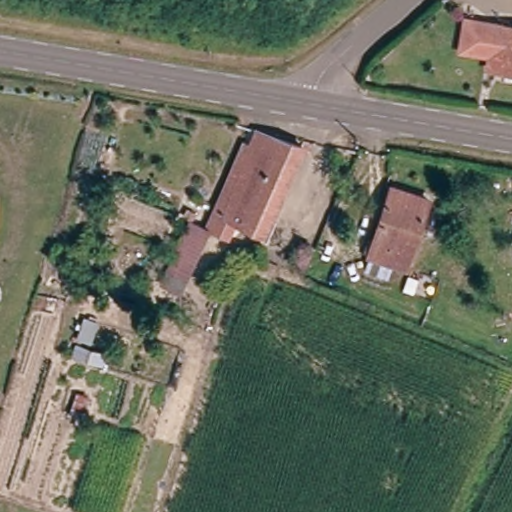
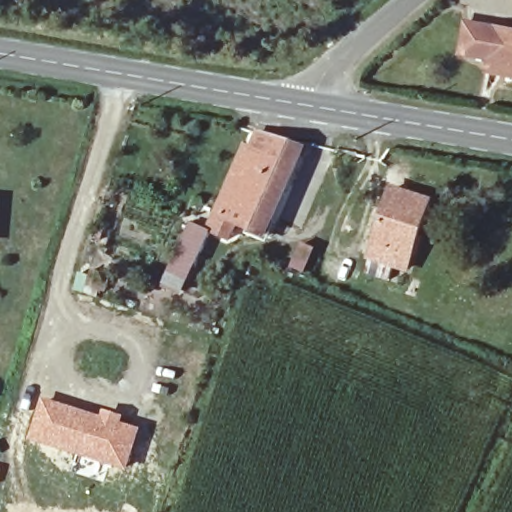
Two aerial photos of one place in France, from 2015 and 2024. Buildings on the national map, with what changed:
unchanged [(491,70),(493,60),(463,55),(468,25),(512,32),(512,74),(491,70)]
unchanged [(299,149),(267,239),(225,224),(257,134),(299,149)]
unchanged [(433,195),(411,266),(393,260),(388,272),(367,265),(394,182),(433,195)]
unchanged [(182,294),(161,285),(187,221),(210,230),(182,294)]
new [(42,398),(100,416),(102,409),(125,416),(123,423),(141,429),(126,473),(27,442),(42,398)]

